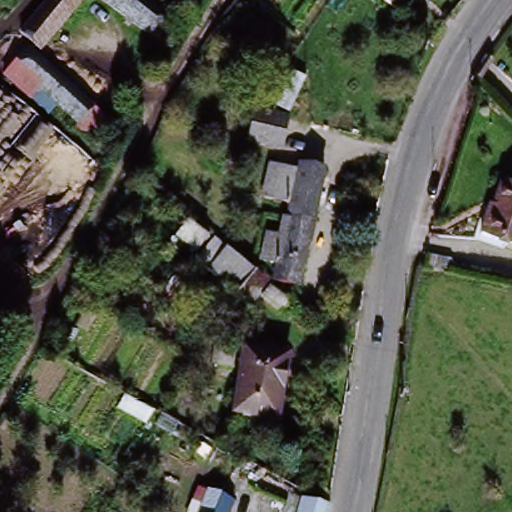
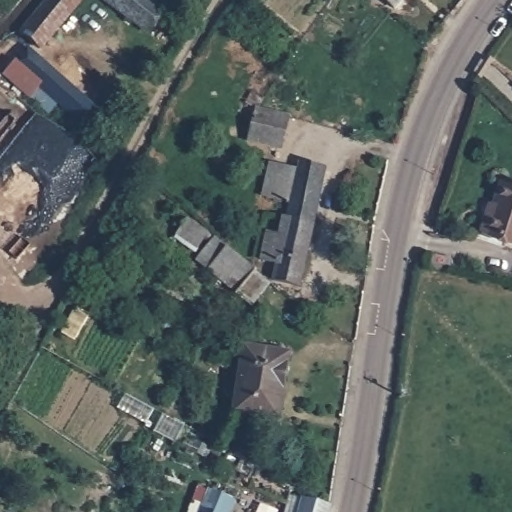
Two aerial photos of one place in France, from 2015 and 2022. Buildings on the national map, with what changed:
unchanged [(22,34),(39,15),(51,0),(83,0),(58,30),(40,49),(35,44),(22,34)]
unchanged [(104,0),(140,0),(169,24),(165,29),(158,25),(147,35),(104,0)]
unchanged [(396,8),(387,0),(403,0),(396,8)]
unchanged [(17,63),(29,51),(109,122),(95,137),(82,126),(79,119),(17,63)]
unchanged [(247,146),(256,107),(293,117),(285,156),(247,146)]
unchanged [(277,265),(262,262),(266,232),(277,233),(278,218),(289,218),(291,203),(266,197),(272,164),(297,170),(300,162),(328,167),(305,288),(276,281),(277,265)]
unchanged [(504,182),(512,184),(512,246),(488,239),(504,182)]
unchanged [(220,243),(228,232),(242,246),(236,256),(289,306),(296,318),(281,316),(252,293),(243,301),(198,261),(213,234),(220,243)]
unchanged [(242,345),(294,354),(285,423),(232,417),(242,345)]
unchanged [(240,497),(234,512),(197,512),(208,484),(240,497)]
unchanged [(332,508),(330,512),(298,512),(301,500),(332,508)]

